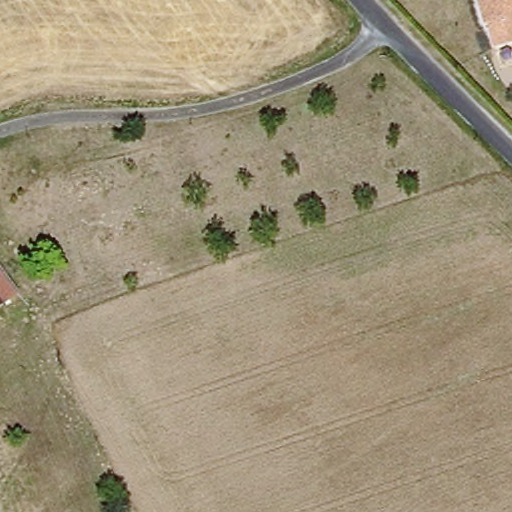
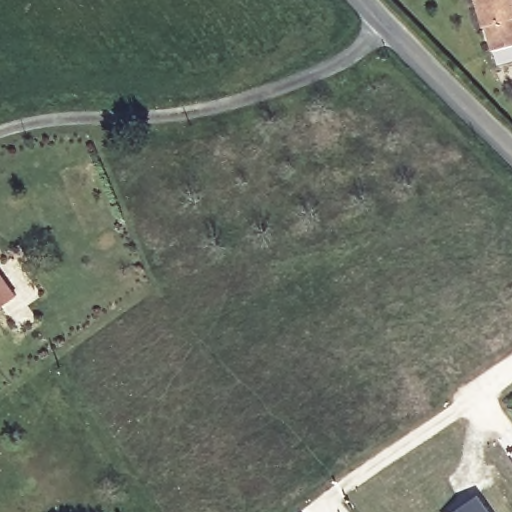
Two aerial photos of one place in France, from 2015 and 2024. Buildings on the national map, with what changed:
unchanged [(492,49),(487,24),(483,25),(478,0),(512,0),(512,44),(492,49)]
unchanged [(0,307),(0,278),(15,294),(0,307)]
new [(457,512),(480,497),(491,512),(457,512)]

